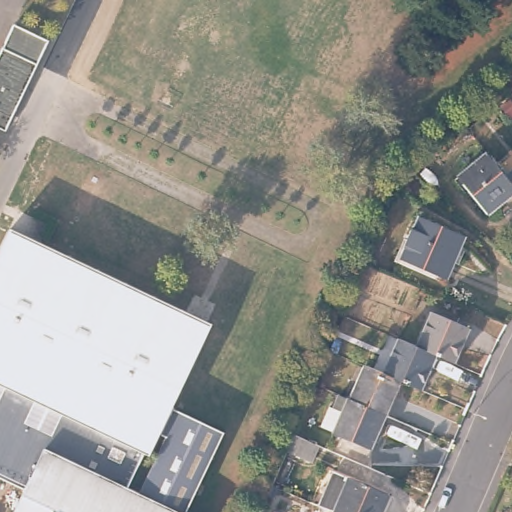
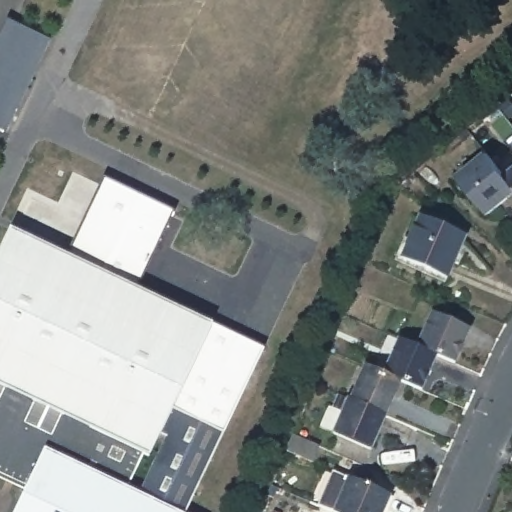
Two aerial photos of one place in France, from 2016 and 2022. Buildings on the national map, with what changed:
unchanged [(49,42),(6,131),(0,129),(0,57),(15,26),(49,42)]
unchanged [(470,190),(466,192),(455,179),(488,153),(506,175),(512,183),(512,192),(488,212),(470,190)]
unchanged [(512,183),(506,175),(512,171),(512,183)]
new [(174,210),(138,290),(67,256),(105,176),(174,210)]
unchanged [(465,235),(447,278),(402,259),(420,216),(465,235)]
unchanged [(143,453),(131,478),(0,437),(0,251),(10,230),(196,317),(143,453)]
unchanged [(422,346),(438,311),(475,327),(460,362),(441,355),(422,346)]
unchanged [(130,490),(138,494),(165,437),(160,435),(150,456),(143,453),(196,317),(211,325),(172,409),(225,433),(189,512),(123,512),(130,490)]
new [(265,347),(225,433),(172,409),(211,325),(265,347)]
unchanged [(388,373),(404,338),(422,346),(441,355),(426,390),(405,380),(388,373)]
unchanged [(356,399),(369,365),(388,373),(405,380),(391,414),(356,399)]
unchanged [(376,450),(338,433),(338,432),(325,426),(333,407),(337,408),(344,395),(353,398),(353,397),(356,399),(391,414),(376,450)]
unchanged [(320,446),(313,463),(287,451),(294,435),(320,446)]
unchanged [(27,489),(0,476),(0,437),(131,478),(126,488),(130,490),(123,512),(16,512),(27,489)]
unchanged [(323,505),(337,471),(394,495),(387,512),(339,512),(323,505)]

